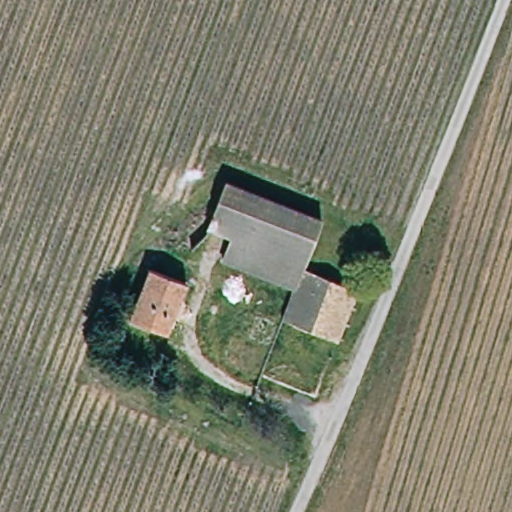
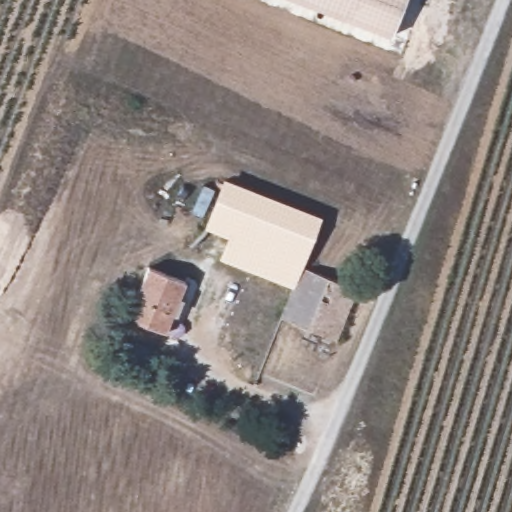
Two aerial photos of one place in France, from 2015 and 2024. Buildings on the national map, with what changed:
new [(407,0),(392,38),(292,0),(407,0)]
unchanged [(206,226),(225,177),(323,215),(303,266),(358,288),(338,340),(283,317),(294,287),(220,258),(229,235),(206,226)]
unchanged [(187,282),(168,329),(128,314),(148,265),(187,282)]

